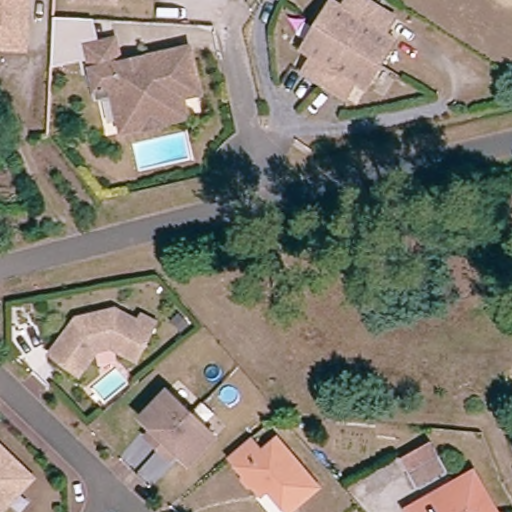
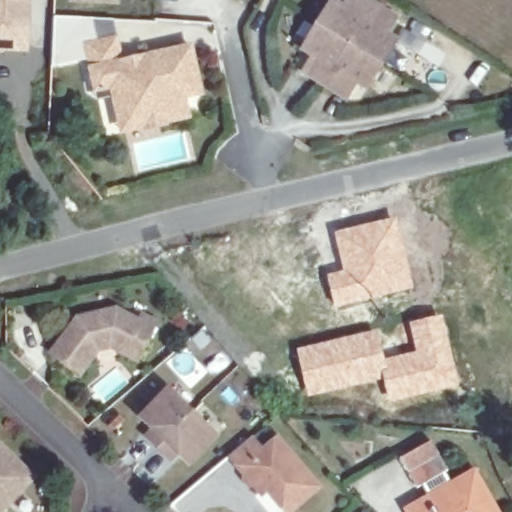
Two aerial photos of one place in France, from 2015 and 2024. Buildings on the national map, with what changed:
unchanged [(21,45),(0,44),(0,0),(23,0),(21,45)]
unchanged [(384,34),(395,41),(378,65),(362,88),(352,81),(341,97),(320,82),(299,68),(310,52),(299,45),(315,22),(330,0),(335,0),(342,5),(345,0),(368,0),(374,4),(395,18),(384,34)]
unchanged [(116,129),(114,121),(108,94),(92,97),(90,87),(79,42),(110,35),(115,59),(126,57),(128,66),(135,64),(133,55),(184,44),(195,90),(178,94),(180,106),(182,114),(116,129)]
new [(342,270),(333,231),(397,217),(414,290),(334,308),(326,273),(342,270)]
unchanged [(77,368),(47,347),(74,311),(113,302),(136,314),(139,310),(154,317),(134,355),(113,343),(92,347),(77,368)]
new [(386,367),(384,358),(415,351),(408,322),(444,314),(461,388),(388,403),(383,381),(381,368),(386,367)]
new [(379,329),(384,358),(386,367),(381,368),(383,381),(308,398),(297,348),(379,329)]
unchanged [(190,411),(214,435),(188,462),(176,450),(169,457),(157,445),(145,433),(152,427),(140,415),(166,387),(190,411)]
unchanged [(290,511),(269,485),(262,490),(257,483),(253,483),(248,477),(248,472),(232,453),(253,437),(265,450),(272,443),(280,437),(290,450),(320,486),(290,511)]
unchanged [(417,489),(400,460),(423,447),(432,442),(440,457),(448,471),(417,489)]
unchanged [(30,475),(0,504),(0,445),(30,475)]
unchanged [(429,500),(451,487),(469,477),(488,512),(407,512),(429,500)]

